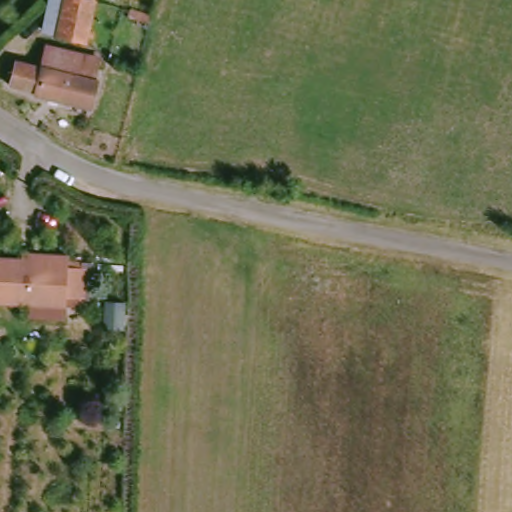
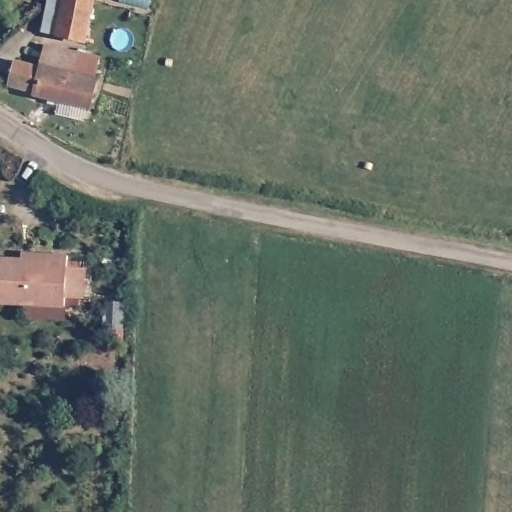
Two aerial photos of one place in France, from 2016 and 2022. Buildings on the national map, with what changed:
unchanged [(53,29),(61,0),(94,0),(85,37),(53,29)]
unchanged [(19,62),(46,69),(53,46),(103,57),(97,80),(100,81),(91,109),(37,95),(37,92),(13,86),(19,62)]
unchanged [(28,302),(0,300),(0,255),(22,257),(23,250),(49,252),(73,253),(73,263),(85,264),(84,293),(84,305),(71,304),(70,317),(27,315),(28,302)]

